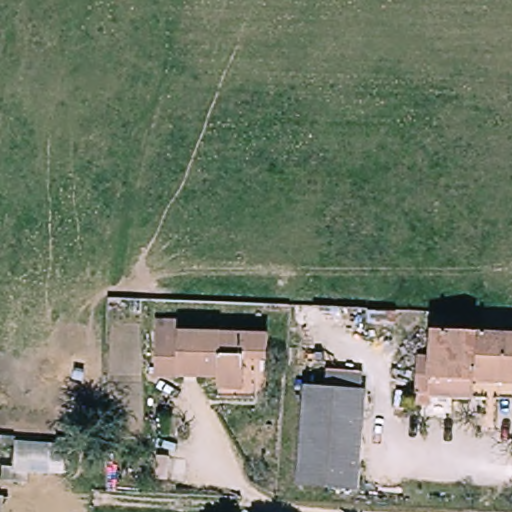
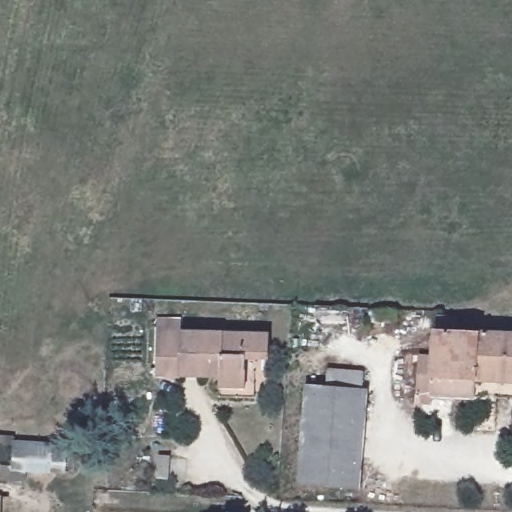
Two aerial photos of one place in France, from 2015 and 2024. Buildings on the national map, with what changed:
unchanged [(432,394),(435,331),(437,318),(458,319),(458,332),(512,335),(512,398),(432,394)]
unchanged [(183,372),(158,375),(158,320),(183,319),(184,329),(183,372)]
unchanged [(222,384),(221,376),(183,372),(184,329),(272,334),(271,349),(271,360),(246,359),(244,385),(222,384)]
unchanged [(357,490),(300,487),(309,389),(364,393),(357,490)]
unchanged [(35,474),(19,473),(21,447),(61,448),(60,462),(59,475),(35,474)]
unchanged [(421,485),(419,497),(398,495),(399,483),(421,485)]

